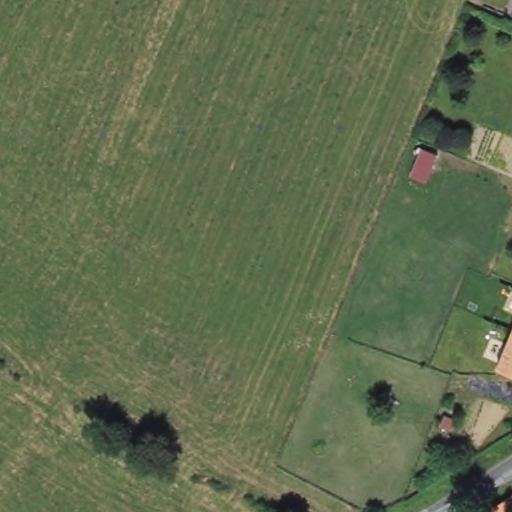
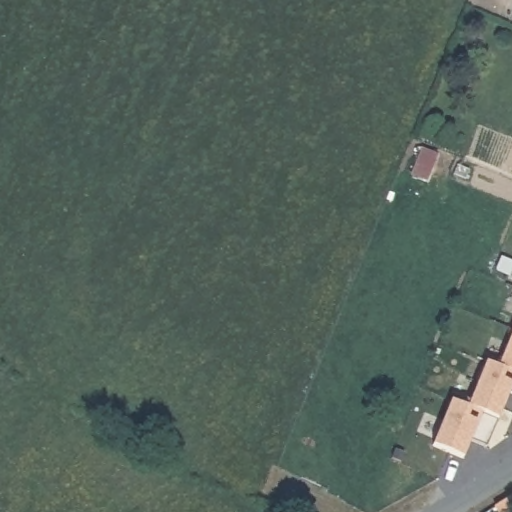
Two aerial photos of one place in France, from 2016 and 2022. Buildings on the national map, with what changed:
unchanged [(511,332),(512,330),(512,332),(511,332)]
unchanged [(512,332),(512,376),(495,368),(511,332),(512,332)]
new [(470,438),(463,456),(433,444),(451,399),(467,406),(485,364),(495,368),(512,376),(512,393),(510,392),(497,419),(486,445),(470,438)]
unchanged [(504,512),(499,504),(512,496),(512,511),(511,512),(504,512)]

